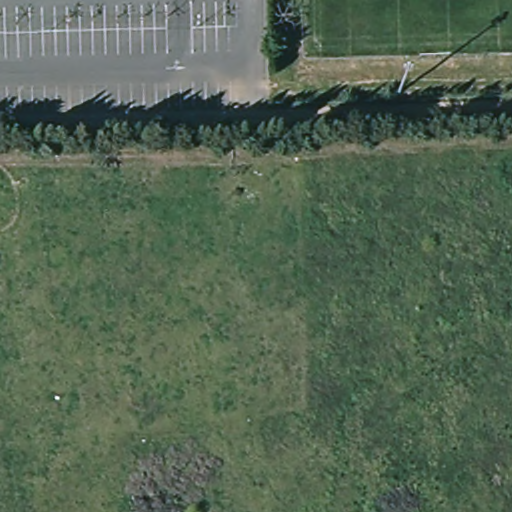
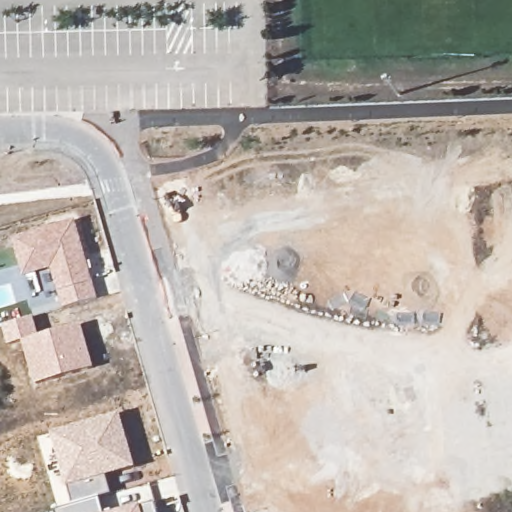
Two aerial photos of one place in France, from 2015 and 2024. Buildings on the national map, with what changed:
new [(51,269),(25,276),(13,238),(75,219),(93,280),(97,297),(64,307),(58,291),(51,269)]
new [(95,367),(35,383),(23,340),(9,345),(3,325),(33,316),(38,335),(82,323),(95,367)]
new [(55,510),(74,505),(67,486),(51,432),(120,413),(136,467),(106,476),(112,494),(100,497),(104,512),(55,512),(55,510)]
new [(140,504),(141,505),(155,502),(157,512),(113,512),(140,504)]

